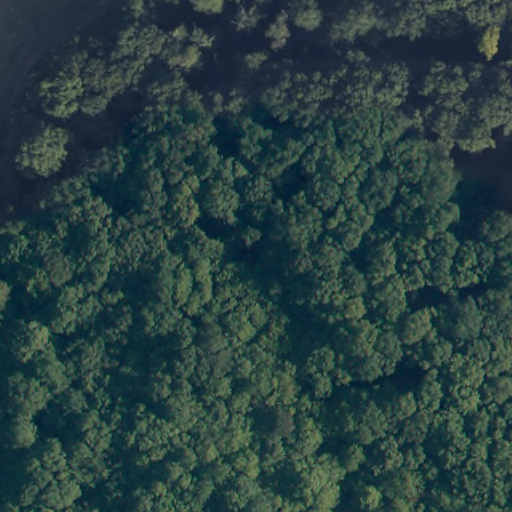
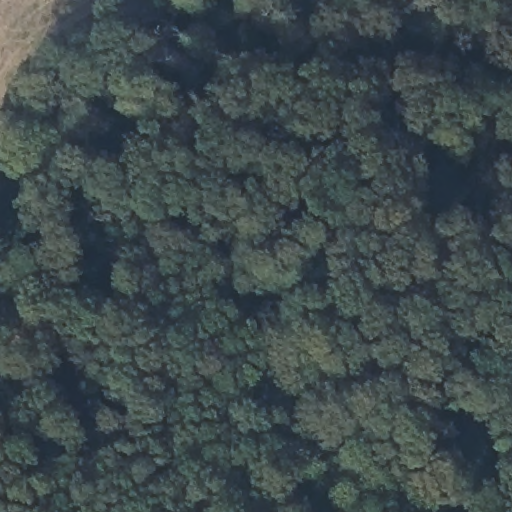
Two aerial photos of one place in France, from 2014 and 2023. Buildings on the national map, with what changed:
[]

